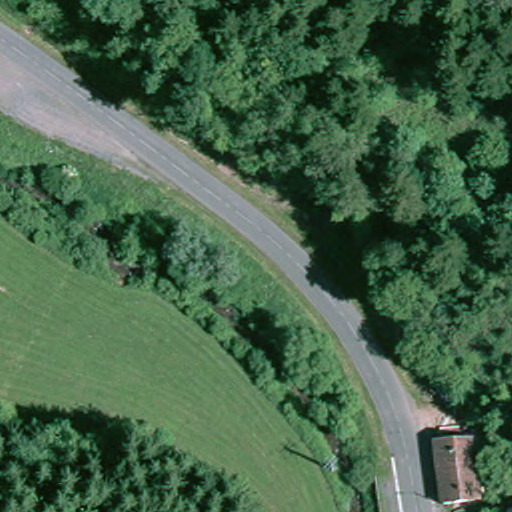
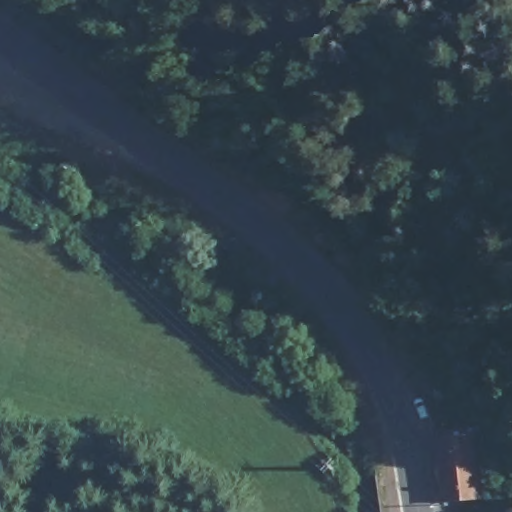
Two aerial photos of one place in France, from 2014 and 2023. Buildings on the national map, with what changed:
unchanged [(436,444),(476,439),(482,502),(442,507),(436,444)]

